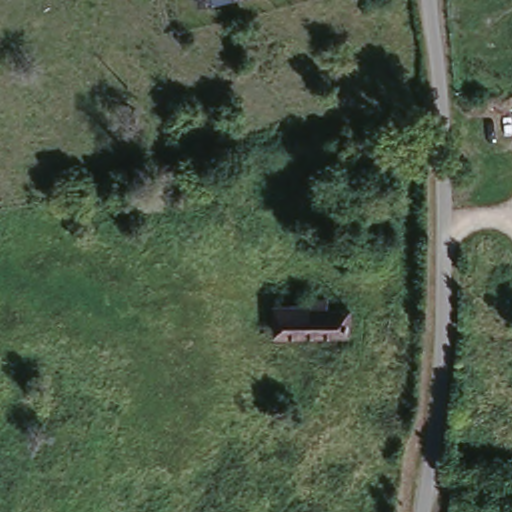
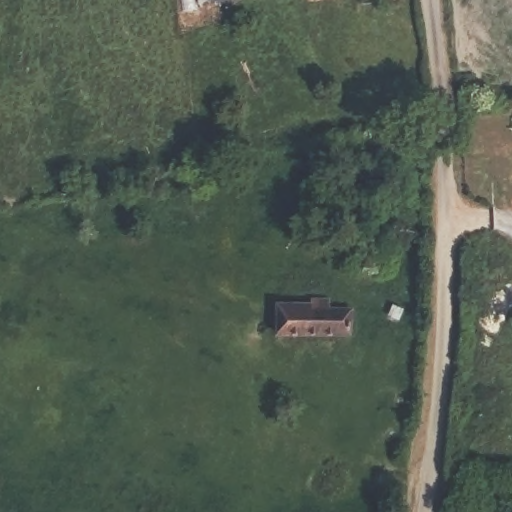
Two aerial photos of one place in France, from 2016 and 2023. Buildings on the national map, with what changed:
unchanged [(209,2),(209,0),(215,0),(209,2)]
unchanged [(311,294),(329,295),(329,305),(353,305),(352,334),(280,336),(279,302),(310,300),(311,294)]

